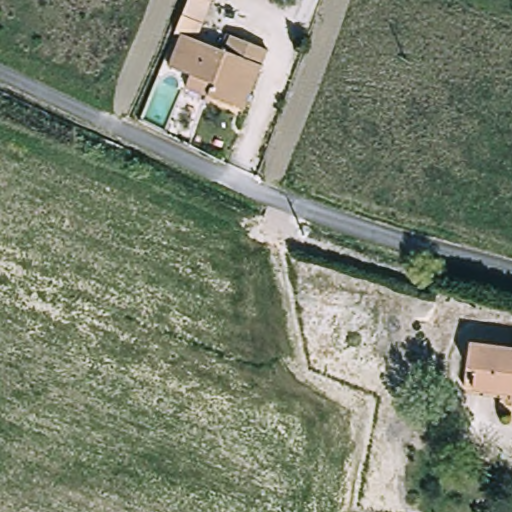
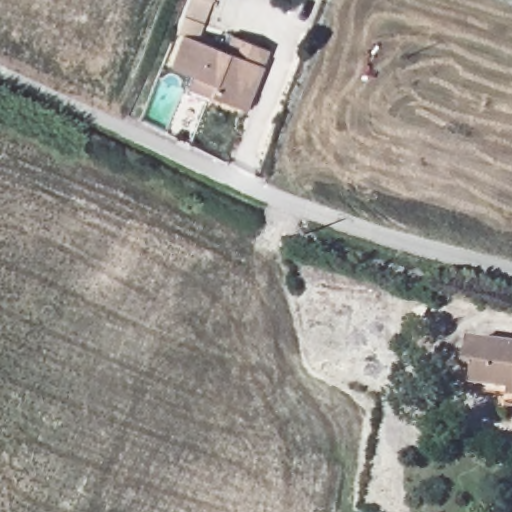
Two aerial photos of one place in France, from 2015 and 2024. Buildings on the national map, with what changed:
unchanged [(202,24),(176,14),(181,0),(212,0),(202,24)]
unchanged [(237,109),(208,97),(214,86),(166,67),(180,35),(226,53),(234,34),(272,50),(265,67),(247,112),(237,109)]
unchanged [(465,346),(512,348),(512,393),(463,390),(465,346)]

